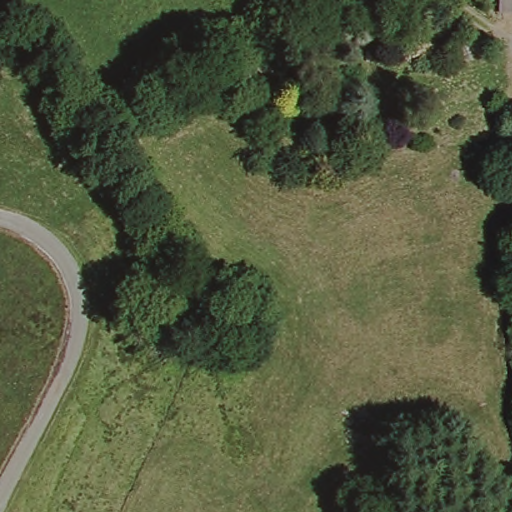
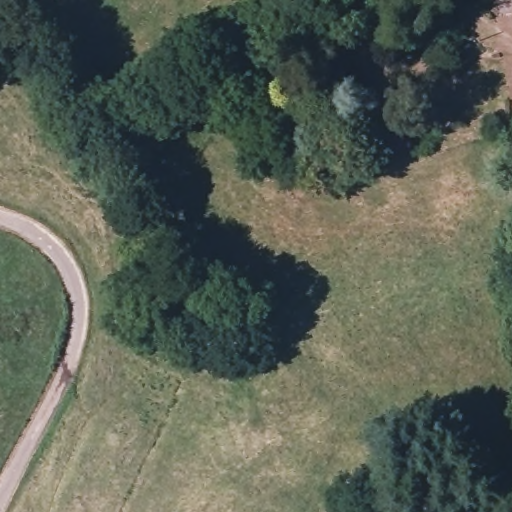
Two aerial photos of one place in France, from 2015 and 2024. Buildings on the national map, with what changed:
unchanged [(492,0),(512,0),(512,10),(492,10),(492,0)]

